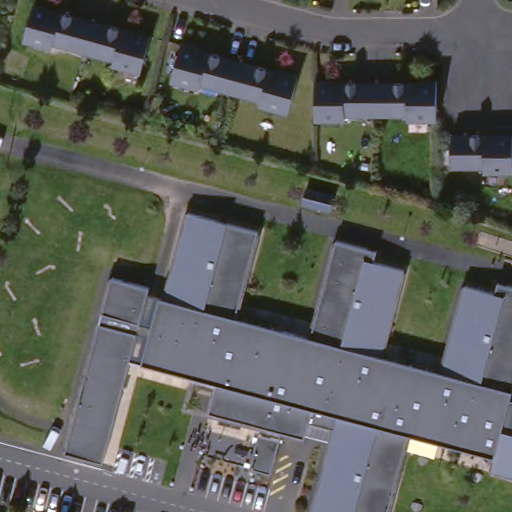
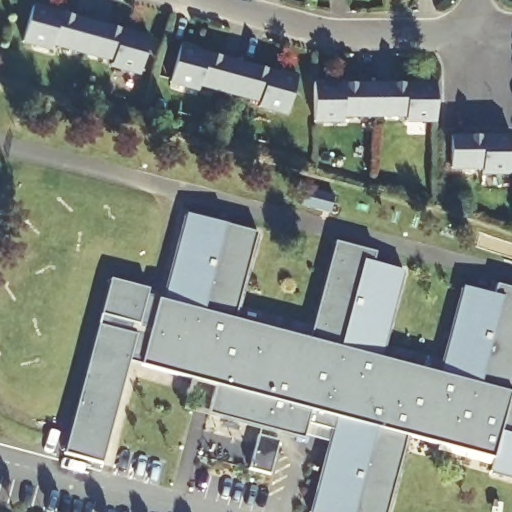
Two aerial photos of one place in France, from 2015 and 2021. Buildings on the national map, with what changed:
unchanged [(51,6),(50,8),(93,20),(85,51),(54,42),(52,47),(25,40),(35,2),(51,6)]
unchanged [(135,31),(136,29),(152,34),(142,72),(114,64),(116,59),(85,51),(93,20),(135,31)]
unchanged [(202,83),(201,88),(172,81),(183,43),(199,47),(199,49),(241,61),(232,92),(202,83)]
unchanged [(283,73),(284,71),(300,75),(290,113),(262,105),(263,100),(232,92),(241,61),(283,73)]
unchanged [(343,120),(343,125),(314,125),(314,85),(332,85),(332,88),(375,88),(375,120),(343,120)]
unchanged [(420,88),(420,85),(436,85),(436,105),(436,125),(407,125),(407,120),(375,120),(375,88),(420,88)]
unchanged [(512,177),(483,177),(483,172),(451,172),(451,140),(512,140),(512,177)]
unchanged [(235,319),(310,339),(335,241),(375,251),(372,262),(402,270),(380,357),(440,372),(463,285),(493,293),(496,282),(512,286),(512,389),(510,399),(512,400),(512,475),(492,470),(495,457),(409,435),(389,512),(314,512),(335,429),(309,423),(305,438),(209,414),(217,385),(141,366),(158,300),(164,301),(186,214),(257,232),(235,319)]
unchanged [(149,284),(139,320),(102,310),(111,274),(149,284)]
unchanged [(137,330),(104,460),(66,450),(99,320),(137,330)]
unchanged [(280,439),(272,474),(250,468),(259,434),(280,439)]

